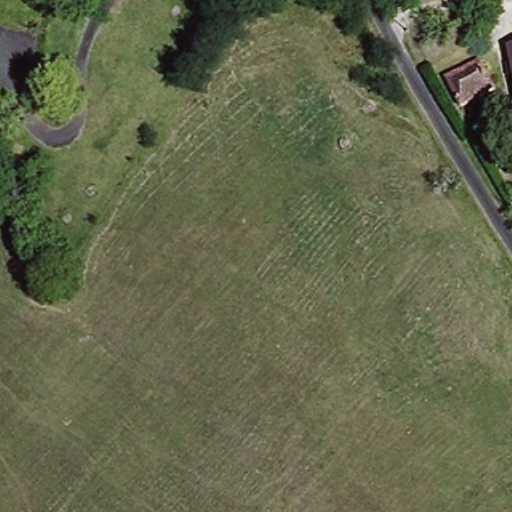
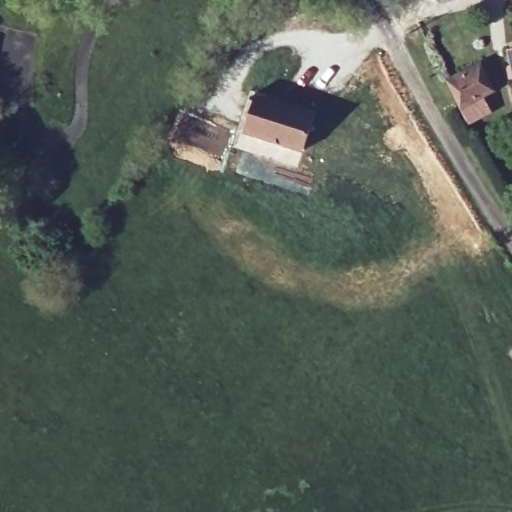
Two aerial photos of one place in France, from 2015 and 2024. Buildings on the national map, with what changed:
unchanged [(504,46),(512,44),(512,76),(504,46)]
unchanged [(454,106),(447,79),(480,66),(488,96),(454,106)]
new [(304,151),(244,131),(256,90),(319,111),(304,151)]

